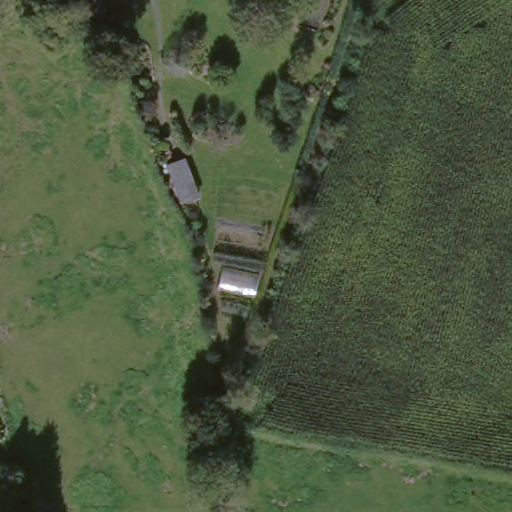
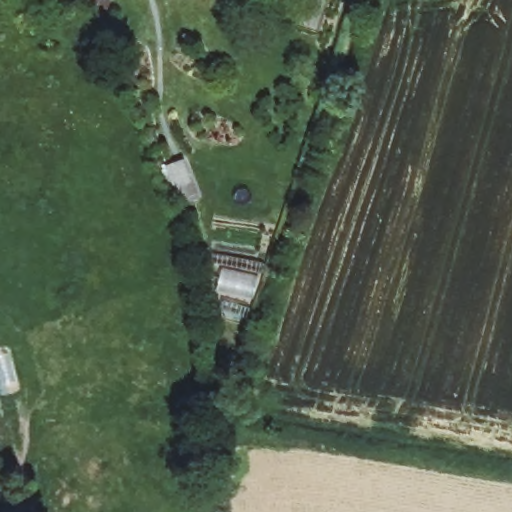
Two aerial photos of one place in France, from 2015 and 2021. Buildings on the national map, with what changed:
unchanged [(199,202),(179,207),(164,167),(184,160),(199,202)]

